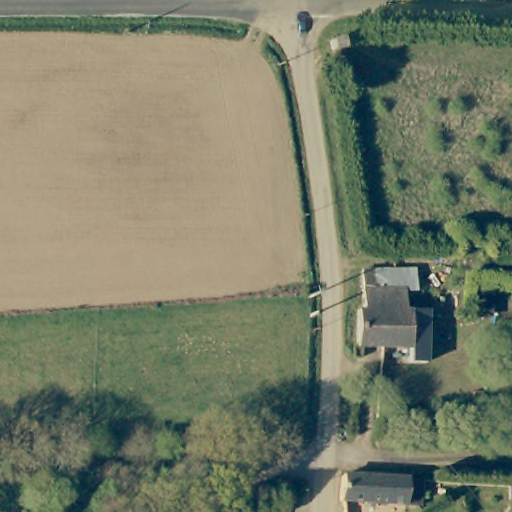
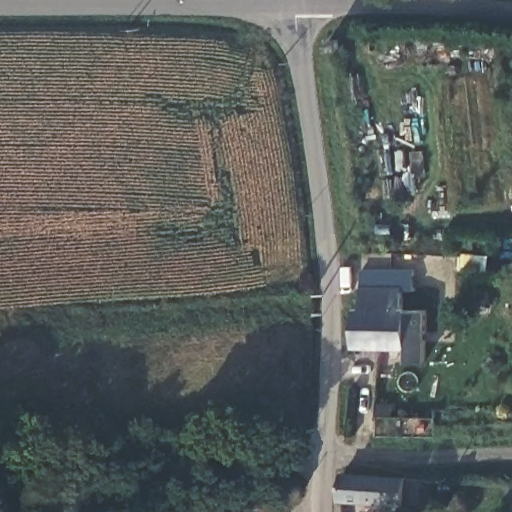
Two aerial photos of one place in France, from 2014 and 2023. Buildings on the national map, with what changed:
unchanged [(356,308),(356,307),(360,307),(361,307),(362,267),(415,269),(414,289),(402,289),(401,309),(424,309),(422,362),(407,362),(408,344),(352,342),(356,308)]
unchanged [(510,292),(508,317),(492,315),(493,291),(510,292)]
unchanged [(411,474),(410,501),(410,502),(395,502),(333,501),(328,501),(330,481),(330,477),(332,474),(393,474),(396,474),(403,474),(411,474)]

